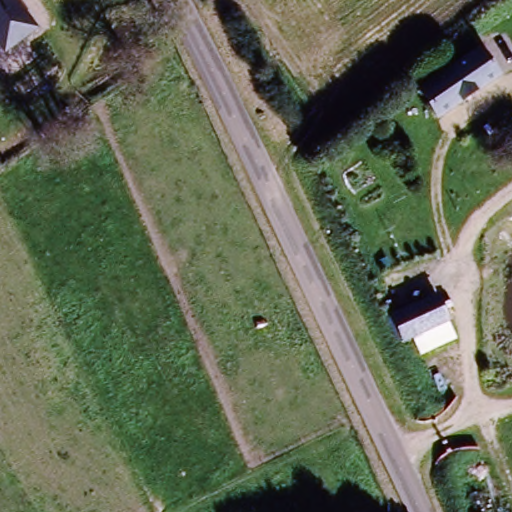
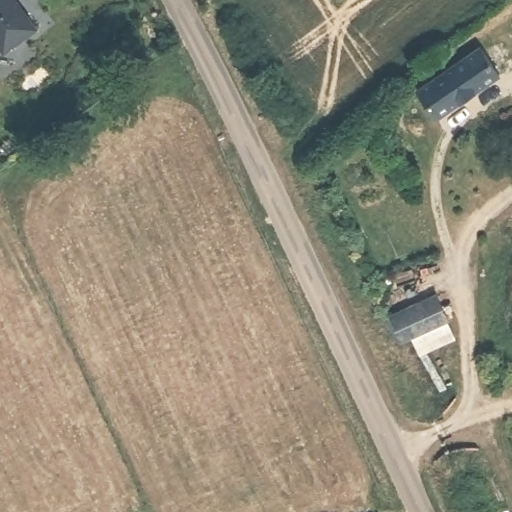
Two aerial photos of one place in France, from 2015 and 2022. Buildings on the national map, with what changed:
unchanged [(0,0),(19,0),(39,27),(4,52),(0,46),(0,0)]
unchanged [(494,76),(436,118),(418,92),(476,50),(494,76)]
unchanged [(398,339),(390,321),(431,303),(439,321),(398,339)]

